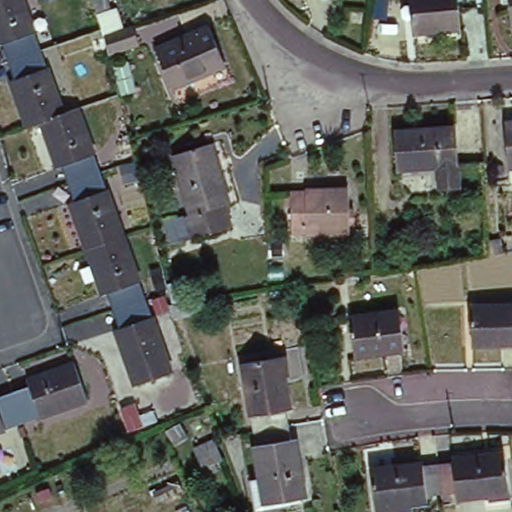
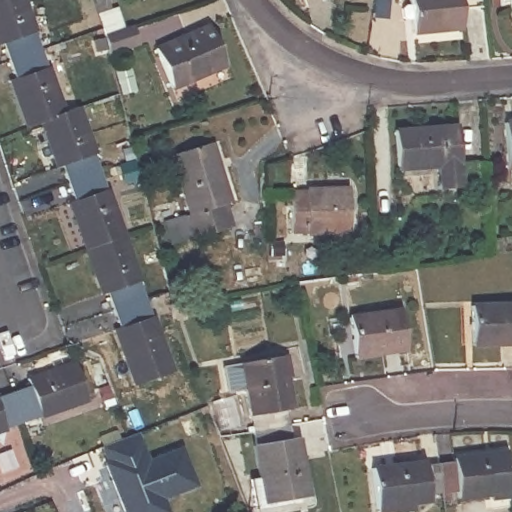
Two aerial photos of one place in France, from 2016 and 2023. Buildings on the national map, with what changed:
unchanged [(27,28),(40,65),(43,64),(59,109),(70,105),(86,149),(83,151),(96,186),(99,185),(112,228),(130,277),(128,278),(141,314),(143,313),(161,367),(121,380),(103,326),(108,325),(96,289),(91,291),(65,214),(66,214),(62,197),(65,196),(53,161),(47,162),(32,118),(21,121),(6,76),(10,75),(0,45),(0,0),(20,0),(29,27),(27,28)]
unchanged [(416,31),(414,0),(462,0),(464,26),(416,31)]
unchanged [(512,23),(510,0),(512,0),(512,23)]
unchanged [(137,37),(108,46),(103,31),(132,21),(137,37)]
unchanged [(212,25),(227,64),(171,84),(157,44),(212,25)]
unchanged [(508,118),(512,117),(512,149),(508,118)]
unchanged [(454,118),(462,180),(443,182),(440,159),(400,163),(395,124),(454,118)]
unchanged [(214,144),(230,203),(226,204),(233,225),(191,236),(186,216),(190,214),(173,154),(214,144)]
unchanged [(344,182),(349,222),(295,231),(289,189),(344,182)]
unchanged [(512,301),(512,342),(477,342),(476,301),(512,301)]
unchanged [(403,311),(408,349),(360,356),(355,319),(403,311)]
unchanged [(251,415),(246,416),(238,363),(282,354),(285,374),(282,375),(287,408),(282,409),(285,423),(254,429),(251,415)]
unchanged [(29,379),(74,363),(87,400),(42,417),(41,415),(6,427),(8,429),(0,432),(0,394),(30,384),(29,379)]
unchanged [(246,480),(256,477),(249,445),(256,444),(254,429),(285,423),(287,436),(291,436),(302,494),(261,503),(250,505),(246,480)]
new [(150,459),(182,448),(197,487),(165,501),(168,512),(125,512),(107,462),(100,448),(137,435),(150,459)]
unchanged [(457,455),(457,452),(507,447),(511,490),(492,491),(492,488),(461,492),(460,487),(444,489),(441,457),(457,455)]
unchanged [(429,490),(430,497),(414,499),(415,503),(380,508),(374,462),(426,454),(427,458),(441,457),(444,489),(429,490)]

